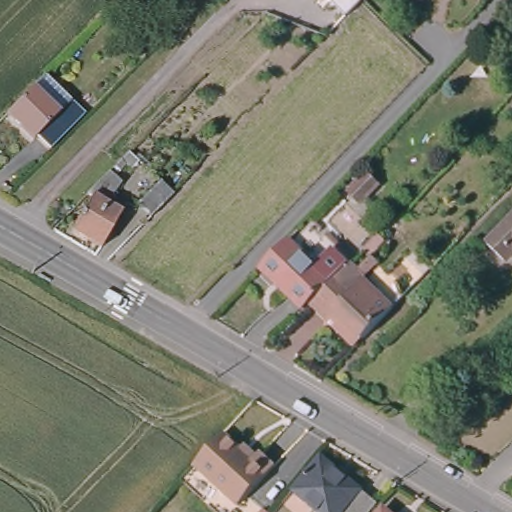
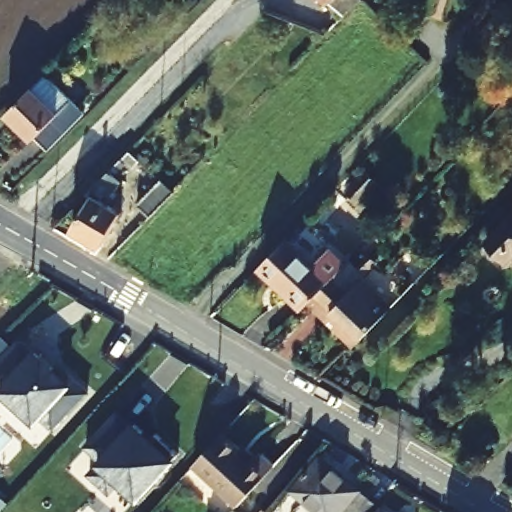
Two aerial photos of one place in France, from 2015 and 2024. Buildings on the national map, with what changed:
unchanged [(359,0),(344,15),(328,0),(359,0)]
unchanged [(74,109),(42,142),(0,106),(0,103),(32,70),(74,109)]
unchanged [(112,197),(102,194),(99,202),(119,213),(100,247),(72,232),(92,197),(88,195),(109,174),(120,180),(112,197)]
unchanged [(165,180),(173,188),(153,208),(146,200),(165,180)]
unchanged [(512,211),(512,242),(507,247),(491,232),(512,211)]
unchanged [(316,302),(305,313),(275,286),(279,281),(266,268),(290,243),(334,284),(316,302)]
unchanged [(367,338),(351,323),(345,329),(316,302),(334,284),(342,275),(357,290),(368,279),(399,306),(367,338)]
new [(35,424),(0,392),(0,338),(5,333),(14,341),(30,353),(34,348),(69,379),(72,375),(91,391),(56,430),(43,415),(35,424)]
new [(120,484),(112,492),(90,471),(101,458),(87,444),(119,407),(135,421),(177,458),(138,499),(120,484)]
unchanged [(221,437),(222,437),(226,433),(255,459),(261,452),(276,466),(240,505),(196,465),(221,437)]
unchanged [(346,512),(341,508),(337,512),(316,512),(287,489),(317,453),(373,500),(363,512),(346,512)]
unchanged [(388,512),(373,512),(380,505),(388,512)]

